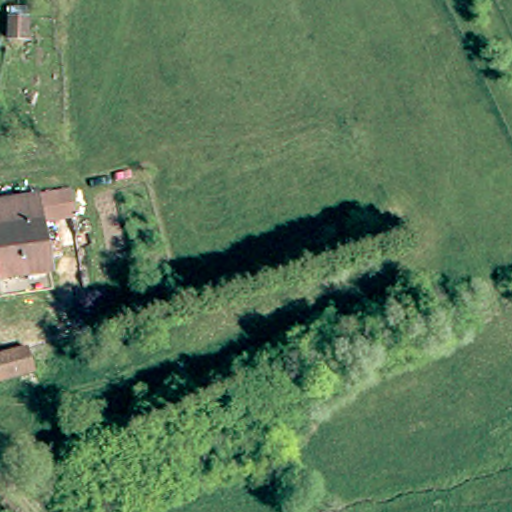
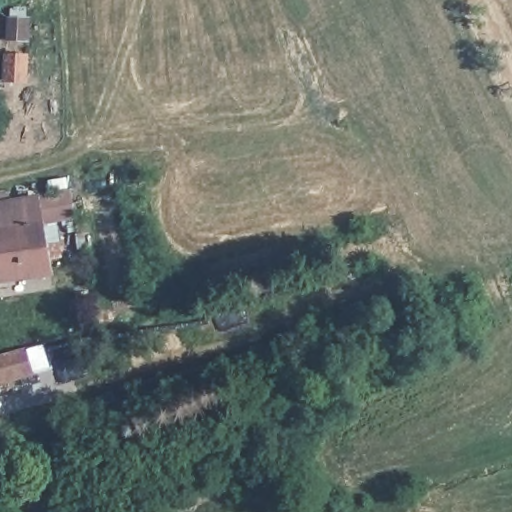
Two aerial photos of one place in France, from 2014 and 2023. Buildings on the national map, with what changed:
unchanged [(46,224),(40,196),(72,192),(76,218),(46,224)]
unchanged [(65,262),(52,264),(55,275),(0,285),(0,282),(0,203),(40,196),(50,250),(63,248),(65,262)]
unchanged [(42,381),(3,392),(0,379),(0,367),(35,357),(42,381)]

